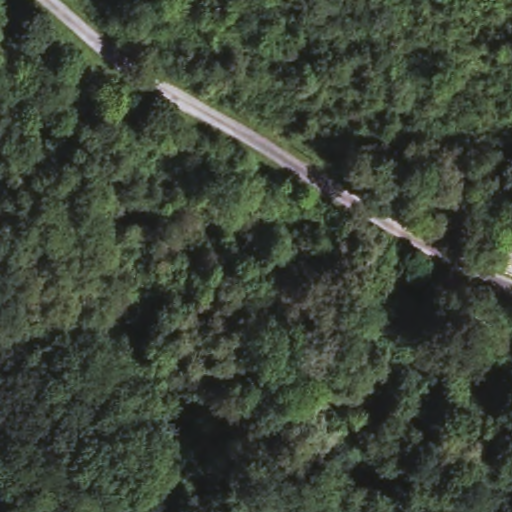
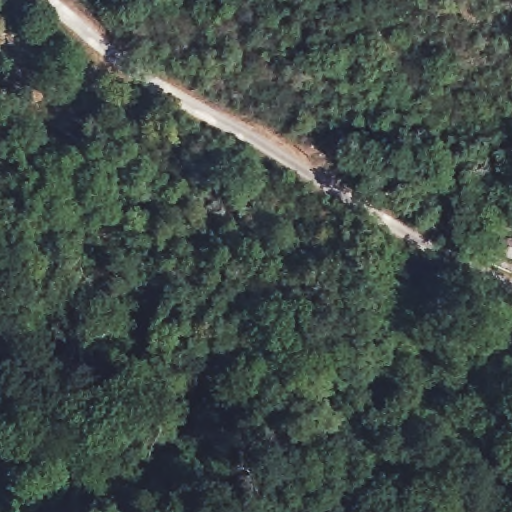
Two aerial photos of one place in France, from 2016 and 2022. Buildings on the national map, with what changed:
unchanged [(512,226),(512,250),(483,211),(512,226)]

